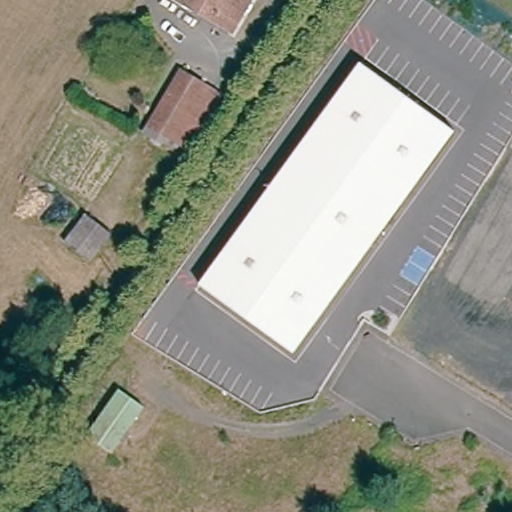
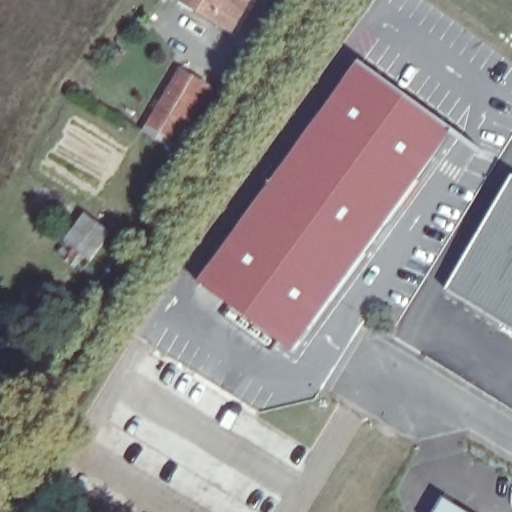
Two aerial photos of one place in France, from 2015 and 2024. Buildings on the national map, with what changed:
unchanged [(179,0),(244,0),(227,29),(179,0)]
unchanged [(201,283),(362,63),(456,130),(294,355),(201,283)]
unchanged [(177,72),(215,94),(179,149),(145,128),(177,72)]
new [(512,184),(512,328),(447,289),(512,184)]
unchanged [(105,237),(89,258),(67,242),(82,219),(105,237)]
unchanged [(145,409),(114,455),(89,439),(120,392),(145,409)]
new [(466,512),(436,512),(444,499),(466,512)]

